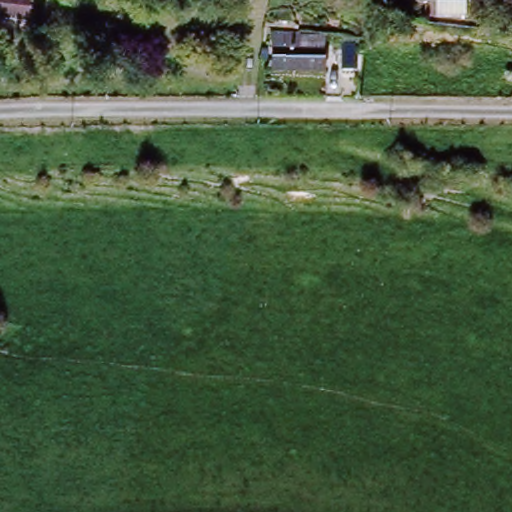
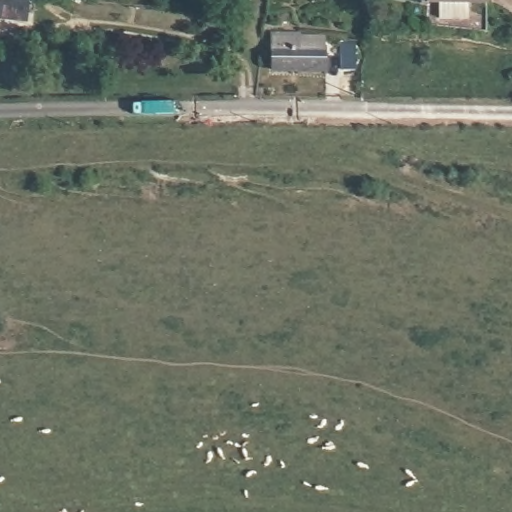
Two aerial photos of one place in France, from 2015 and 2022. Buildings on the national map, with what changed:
unchanged [(0,0),(29,1),(28,20),(0,19),(0,0)]
unchanged [(469,23),(438,21),(439,8),(426,6),(426,0),(487,0),(487,6),(469,7),(469,23)]
unchanged [(323,75),(276,74),(276,55),(277,37),(324,39),(324,56),(323,75)]

